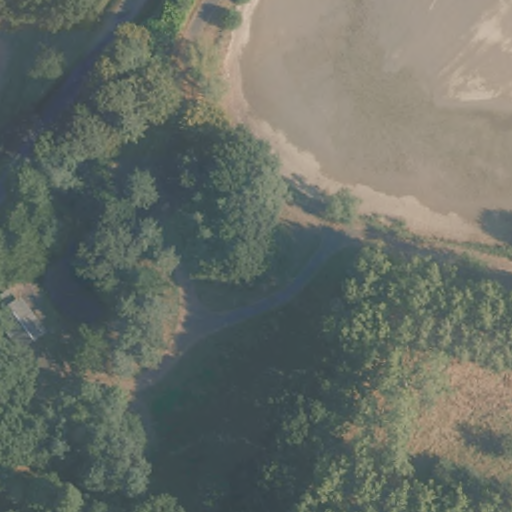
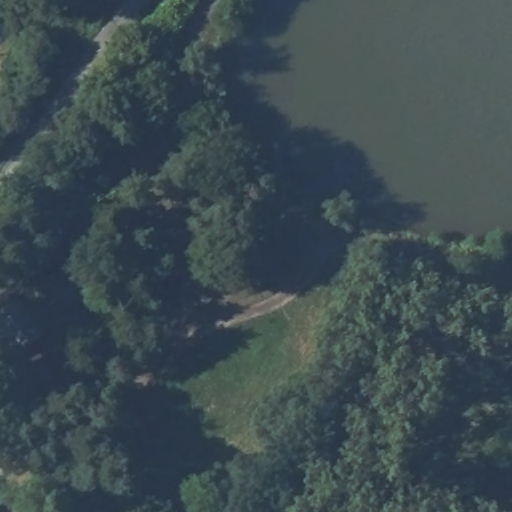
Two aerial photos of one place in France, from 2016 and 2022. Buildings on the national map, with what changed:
unchanged [(18,305),(22,302),(44,333),(45,335),(43,336),(21,351),(0,324),(0,318),(2,317),(0,316),(0,296),(7,291),(18,305)]

